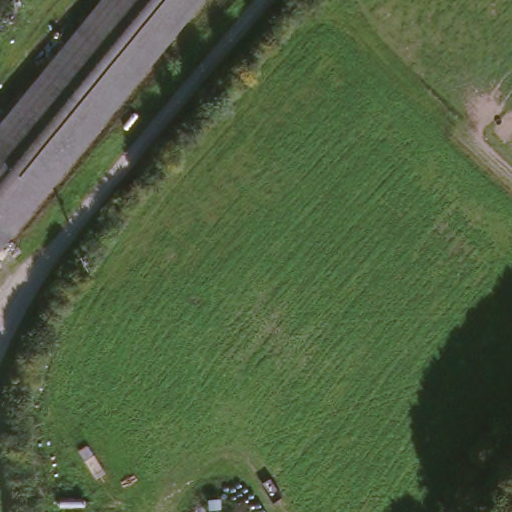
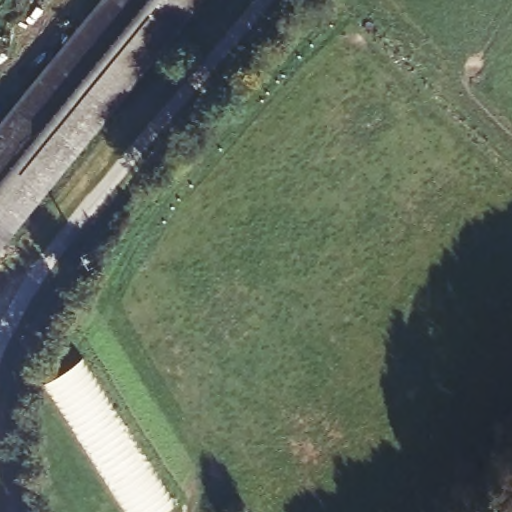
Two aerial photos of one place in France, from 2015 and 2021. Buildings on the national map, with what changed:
unchanged [(211,0),(12,232),(0,248),(0,127),(107,0),(211,0)]
new [(175,505),(164,512),(129,512),(44,383),(81,360),(175,505)]

